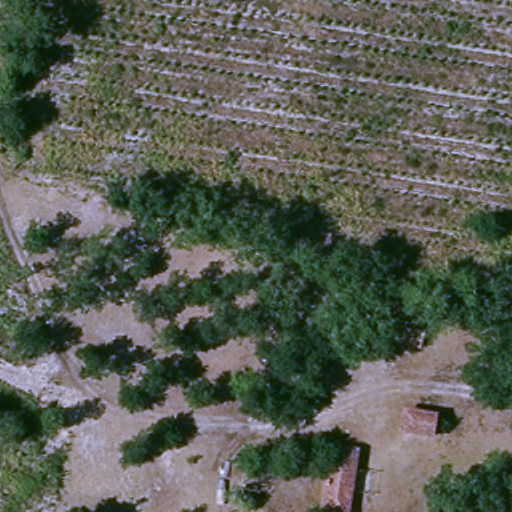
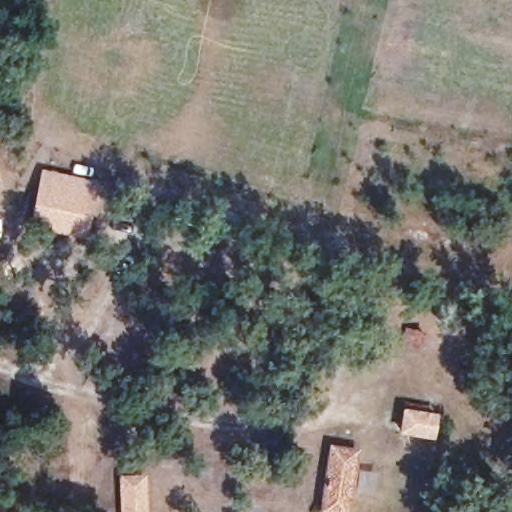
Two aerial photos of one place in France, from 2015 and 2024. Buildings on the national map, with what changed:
new [(29,229),(40,170),(97,181),(84,240),(29,229)]
unchanged [(441,415),(439,442),(400,437),(404,410),(441,415)]
unchanged [(353,512),(321,512),(329,444),(364,451),(353,512)]
new [(146,475),(147,512),(120,512),(118,477),(146,475)]

